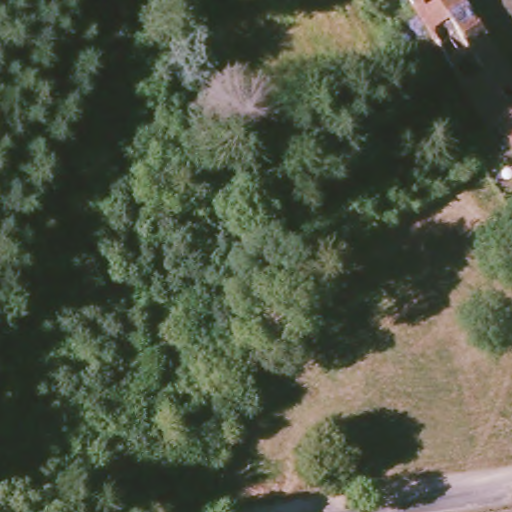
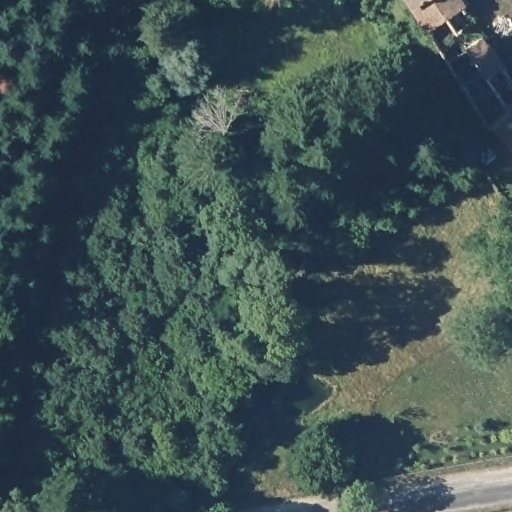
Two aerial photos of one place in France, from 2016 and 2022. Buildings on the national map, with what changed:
unchanged [(410,4),(408,0),(415,0),(410,4)]
unchanged [(415,0),(461,0),(512,78),(512,107),(495,124),(489,129),(449,66),(410,4),(415,0)]
unchanged [(512,107),(512,145),(495,124),(512,107)]

